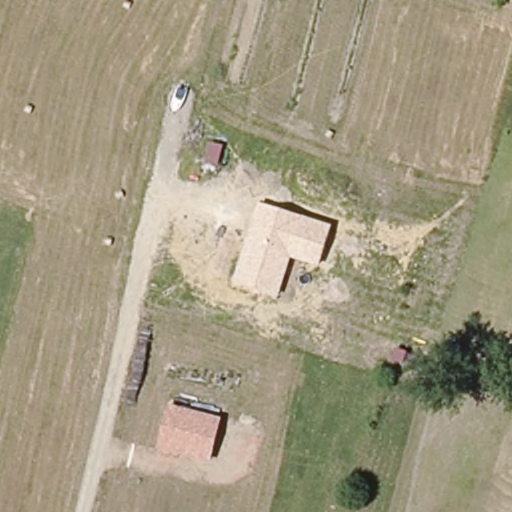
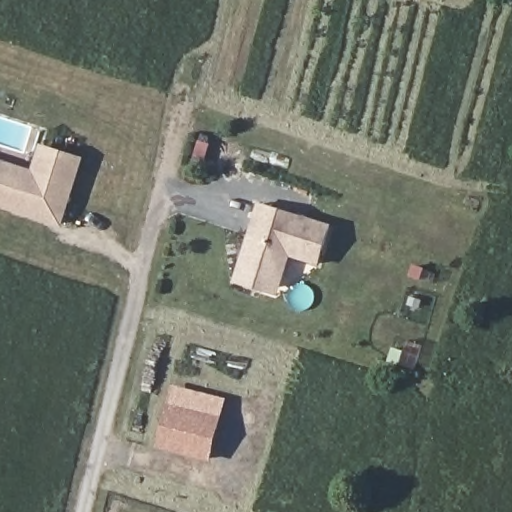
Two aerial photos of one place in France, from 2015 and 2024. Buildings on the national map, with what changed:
new [(61,227),(0,208),(0,159),(33,169),(41,144),(84,157),(61,227)]
unchanged [(319,266),(290,257),(279,298),(232,283),(257,202),(331,224),(319,266)]
unchanged [(210,462),(159,449),(170,405),(220,418),(210,462)]

